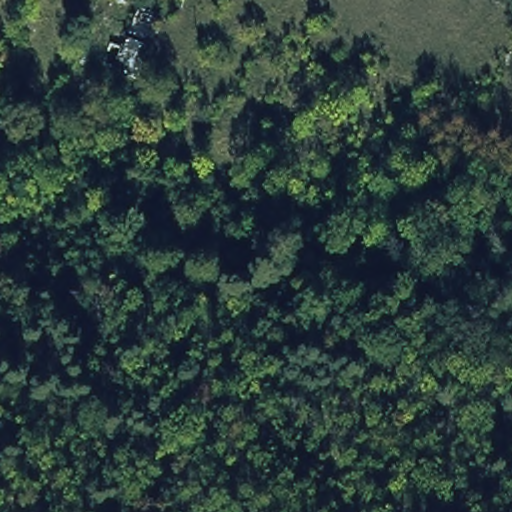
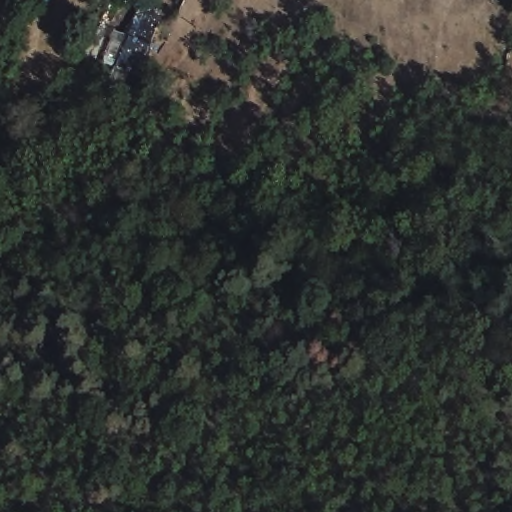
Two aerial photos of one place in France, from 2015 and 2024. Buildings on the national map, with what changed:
unchanged [(110,64),(134,4),(162,13),(137,60),(110,64)]

